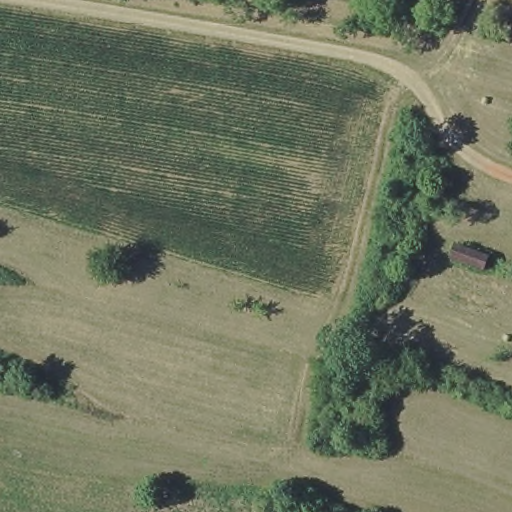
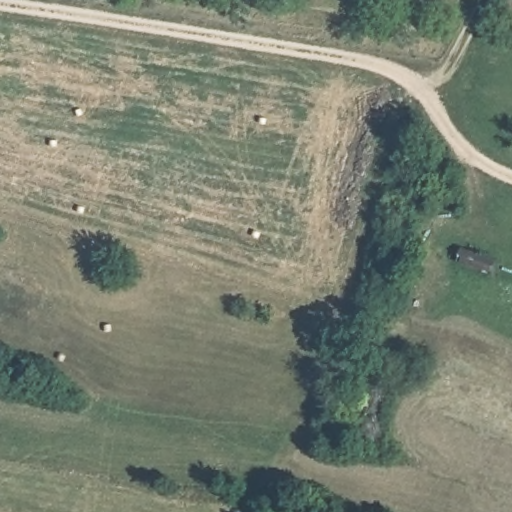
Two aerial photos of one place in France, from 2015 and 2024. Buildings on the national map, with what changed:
unchanged [(494,277),(455,265),(461,250),(498,262),(494,277)]

